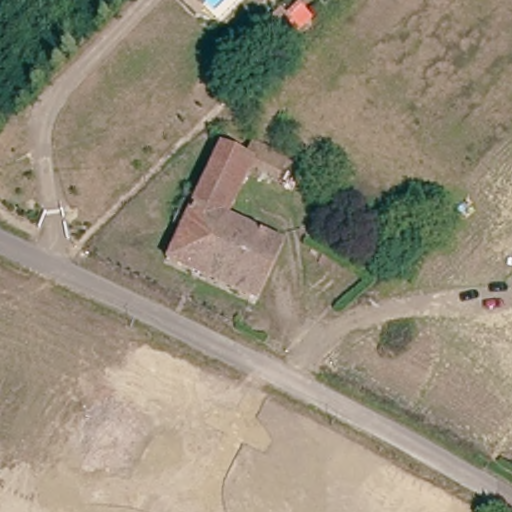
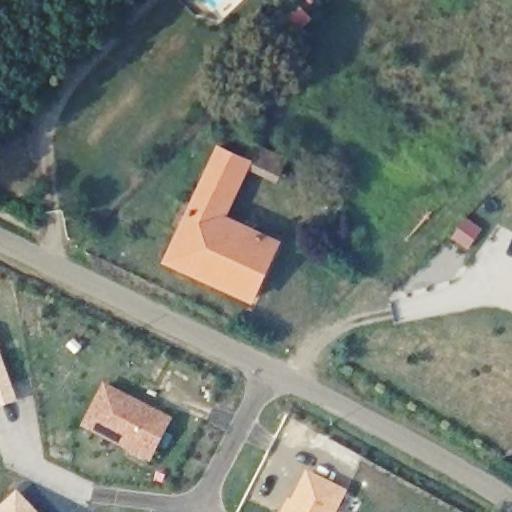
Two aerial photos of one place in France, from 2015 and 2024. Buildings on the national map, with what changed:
unchanged [(290,3),(301,14),(296,19),(305,28),(289,43),(269,23),(290,3)]
unchanged [(291,176),(261,165),(267,151),(297,164),(291,176)]
unchanged [(254,162),(229,218),(288,245),(265,302),(184,267),(200,225),(192,222),(197,205),(206,208),(230,152),(254,162)]
new [(0,409),(0,351),(18,402),(0,409)]
new [(80,427),(103,382),(173,419),(150,462),(80,427)]
demolished [(100,437),(117,401),(140,410),(122,447),(100,437)]
demolished [(87,465),(111,475),(146,493),(137,512),(70,512),(66,510),(87,465)]
new [(347,490),(336,512),(283,512),(305,469),(347,490)]
new [(38,512),(0,512),(0,508),(17,490),(38,512)]
demolished [(468,499),(479,508),(477,512),(466,512),(461,509),(468,499)]

